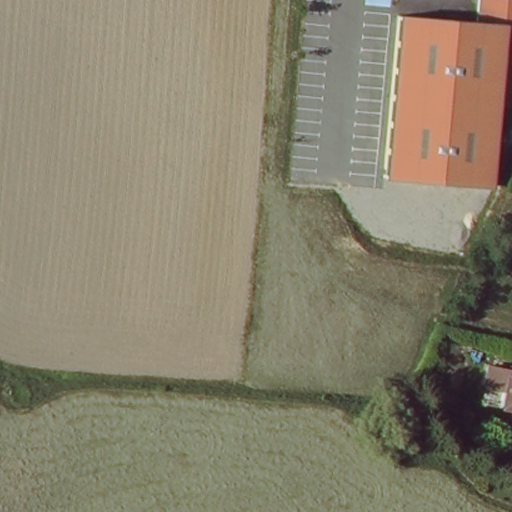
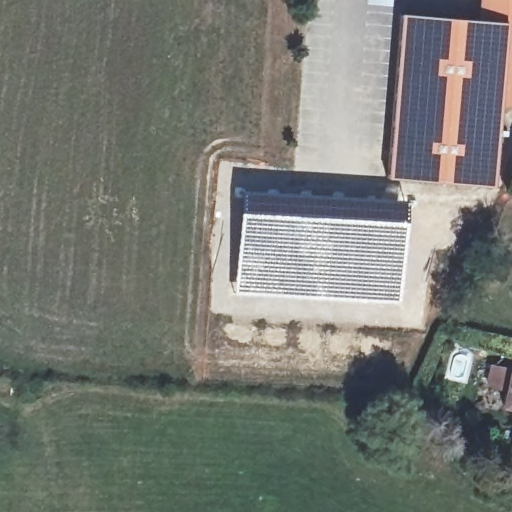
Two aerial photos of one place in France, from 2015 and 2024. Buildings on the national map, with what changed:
unchanged [(495,181),(390,176),(402,11),(485,15),(485,0),(512,0),(512,100),(501,99),(495,181)]
new [(239,190),(272,193),(272,197),(263,197),(262,208),(265,208),(265,209),(402,218),(398,300),(232,294),(239,190)]
unchanged [(505,392),(485,388),(488,364),(510,368),(511,365),(512,365),(512,412),(501,409),(505,392)]

